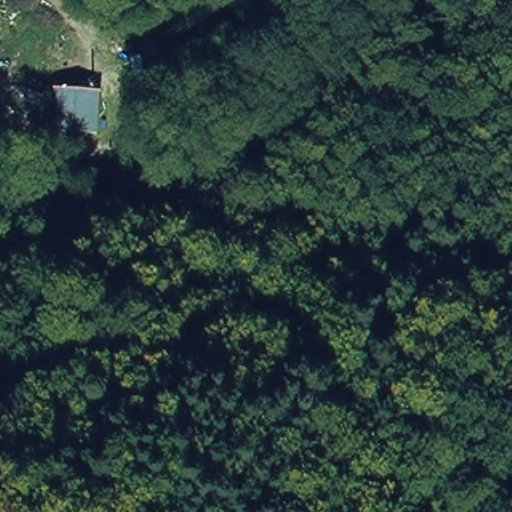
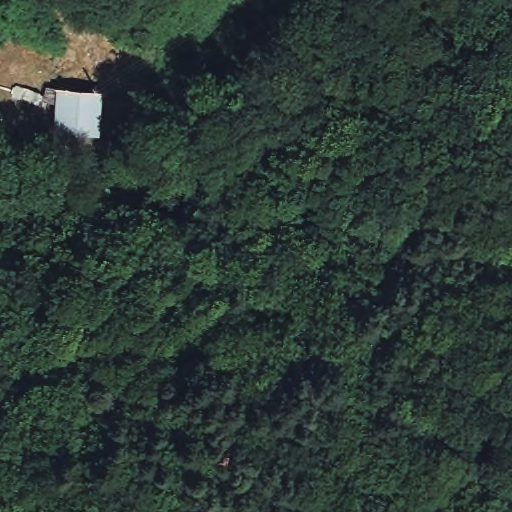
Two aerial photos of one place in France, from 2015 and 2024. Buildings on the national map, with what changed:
unchanged [(52,134),(53,86),(103,88),(101,136),(52,134)]

